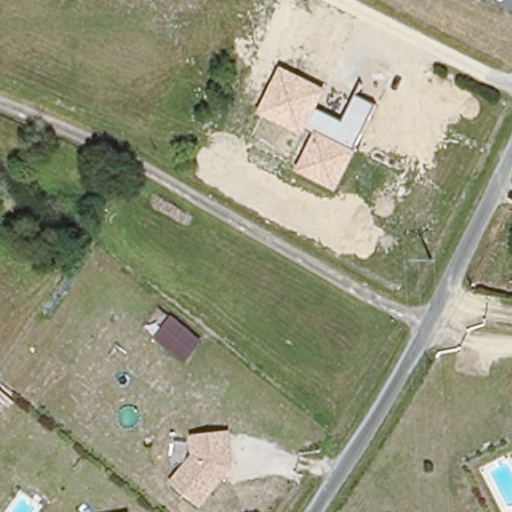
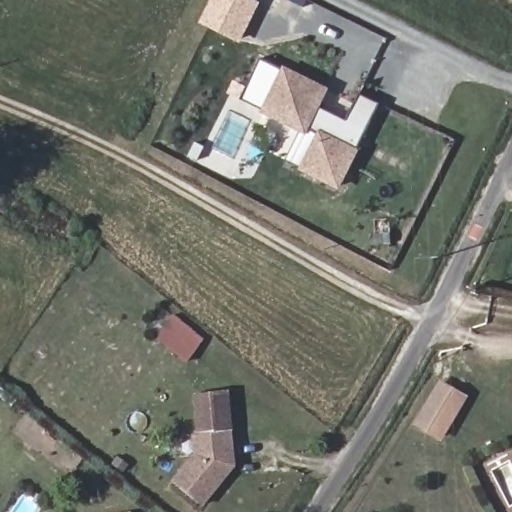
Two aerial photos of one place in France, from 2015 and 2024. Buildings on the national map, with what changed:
new [(211,0),(254,0),(261,3),(243,41),(234,37),(233,40),(199,23),(211,0)]
new [(262,109),(241,98),(260,59),(281,70),(262,109)]
unchanged [(357,149),(361,151),(341,192),(299,171),(318,134),(310,129),(306,136),(260,112),(284,65),(330,89),(321,109),(346,122),(360,93),(382,103),(357,149)]
unchanged [(188,365),(156,339),(175,315),(206,341),(188,365)]
new [(414,426),(438,381),(469,395),(442,441),(414,426)]
new [(195,436),(192,393),(231,390),(233,430),(195,436)]
unchanged [(195,436),(233,430),(236,470),(205,507),(174,482),(196,453),(195,436)]

